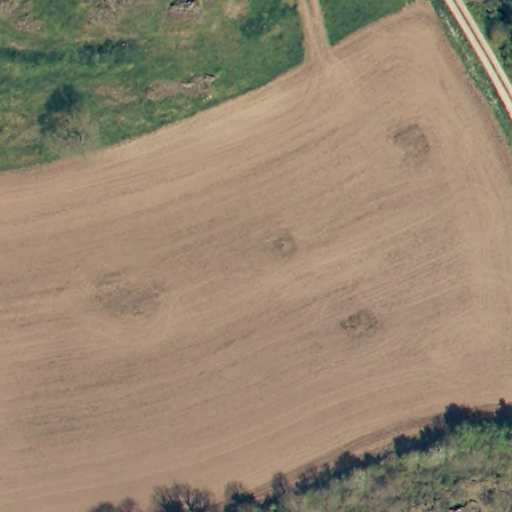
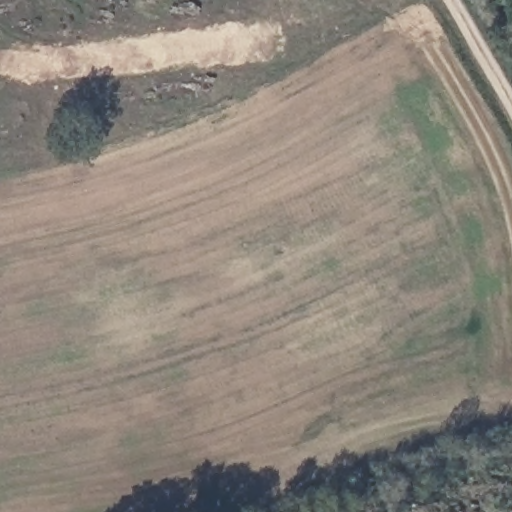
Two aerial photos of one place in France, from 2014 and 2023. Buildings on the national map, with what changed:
[]

